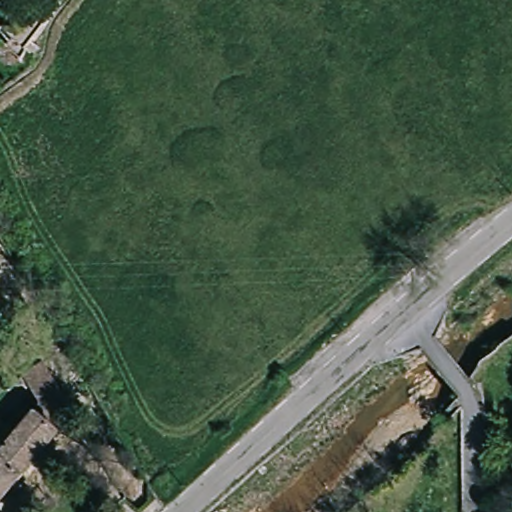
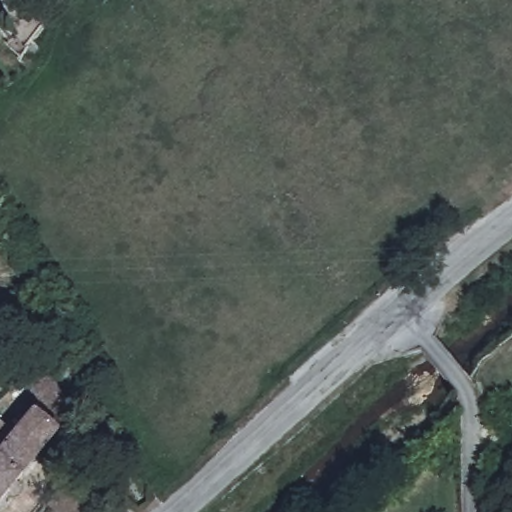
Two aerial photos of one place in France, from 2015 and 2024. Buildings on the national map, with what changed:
unchanged [(47,361),(49,371),(78,407),(77,409),(59,430),(36,410),(42,402),(25,373),(47,361)]
unchanged [(36,410),(59,430),(0,502),(0,420),(17,432),(36,410)]

